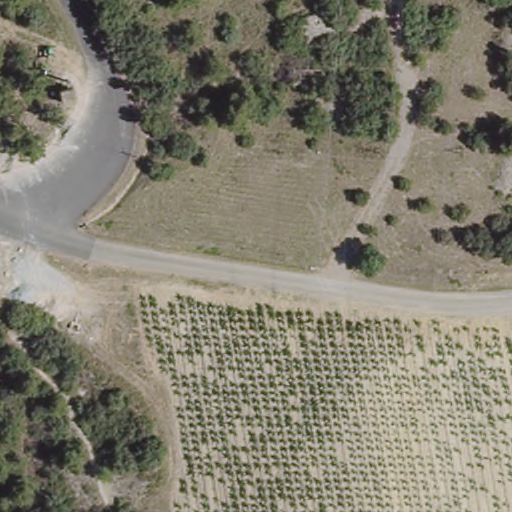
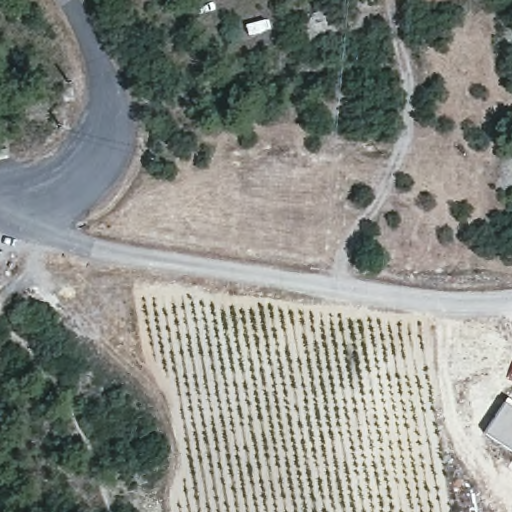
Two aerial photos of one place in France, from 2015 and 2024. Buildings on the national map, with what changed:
new [(484,434),(507,399),(512,402),(512,452),(484,434)]

